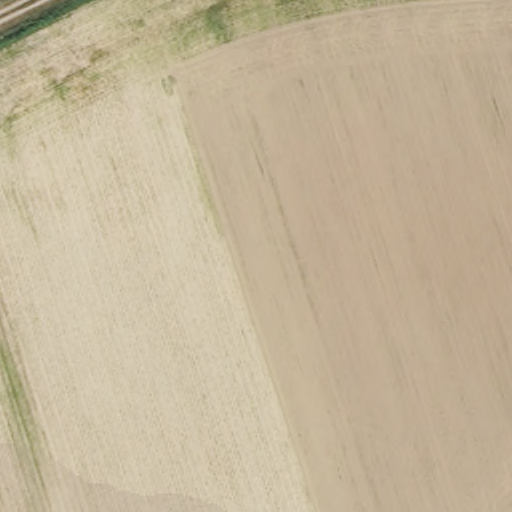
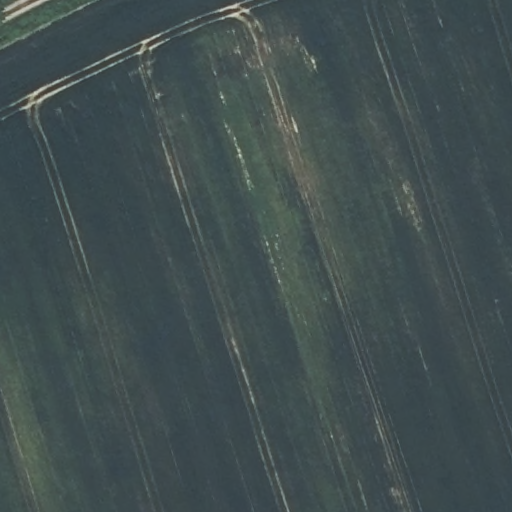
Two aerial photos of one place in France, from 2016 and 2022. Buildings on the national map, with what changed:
[]

